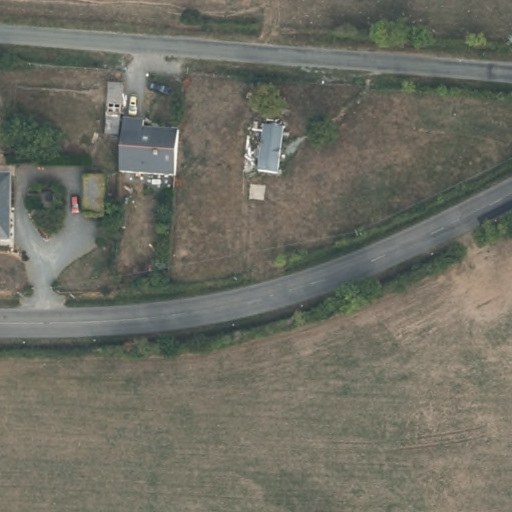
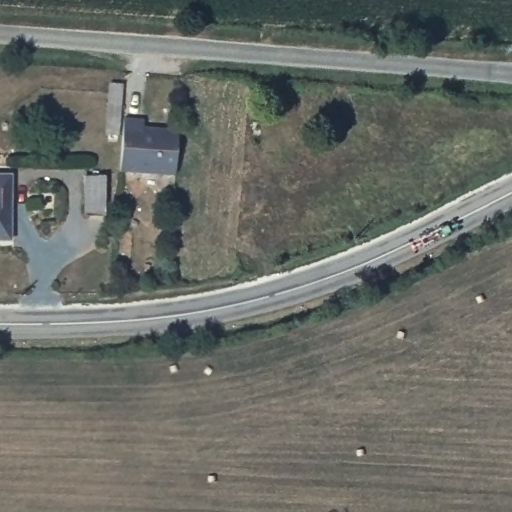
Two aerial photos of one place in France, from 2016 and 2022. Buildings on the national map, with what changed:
unchanged [(120,131),(108,131),(110,82),(122,83),(120,131)]
unchanged [(123,170),(125,115),(146,115),(146,124),(181,124),(179,172),(123,170)]
demolished [(280,177),(258,172),(263,117),(287,122),(280,177)]
unchanged [(10,236),(0,236),(0,172),(9,172),(10,236)]
unchanged [(106,210),(90,211),(89,174),(105,174),(106,210)]

